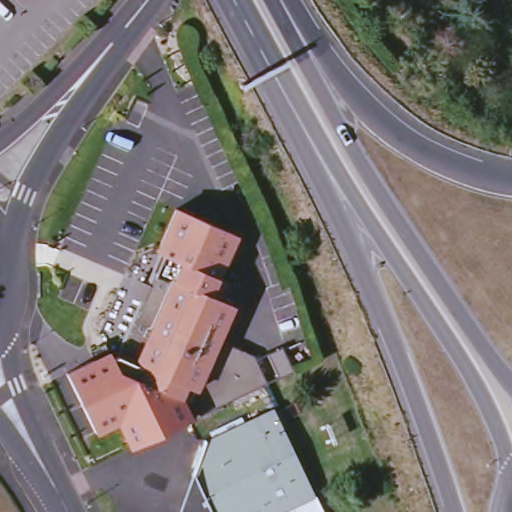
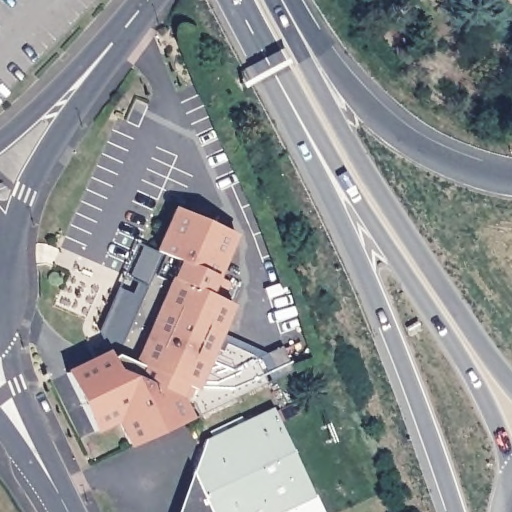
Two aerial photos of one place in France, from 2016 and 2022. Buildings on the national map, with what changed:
unchanged [(177,398),(188,421),(130,448),(117,422),(94,433),(67,374),(110,354),(112,359),(117,357),(141,304),(127,297),(134,283),(147,289),(155,272),(159,274),(166,257),(159,254),(178,210),(185,214),(187,212),(195,216),(195,218),(237,237),(219,279),(230,285),(222,302),(234,308),(190,404),(177,398)]
unchanged [(194,477),(206,443),(274,411),(315,499),(321,512),(181,512),(194,477)]

